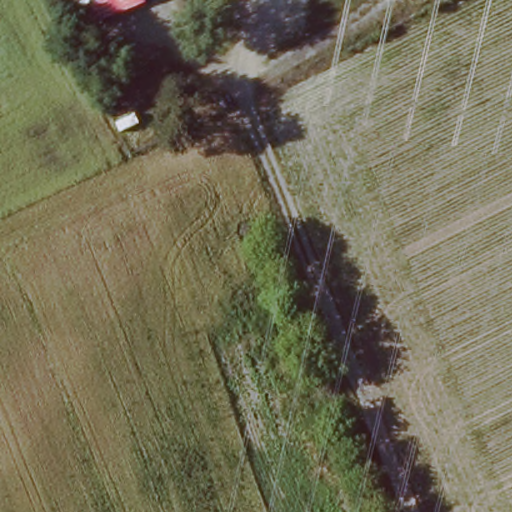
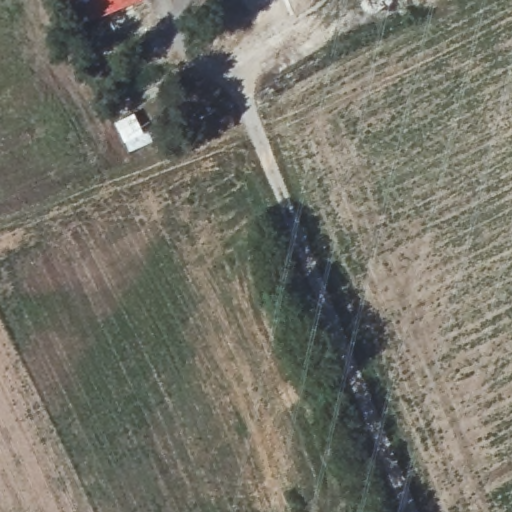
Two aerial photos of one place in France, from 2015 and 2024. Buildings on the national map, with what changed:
unchanged [(118,12),(88,24),(81,0),(114,0),(118,12)]

